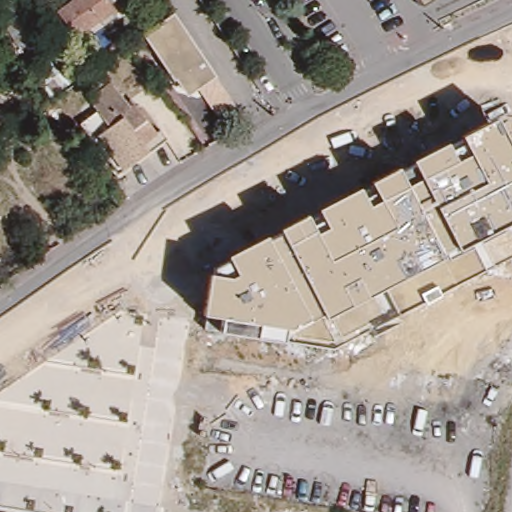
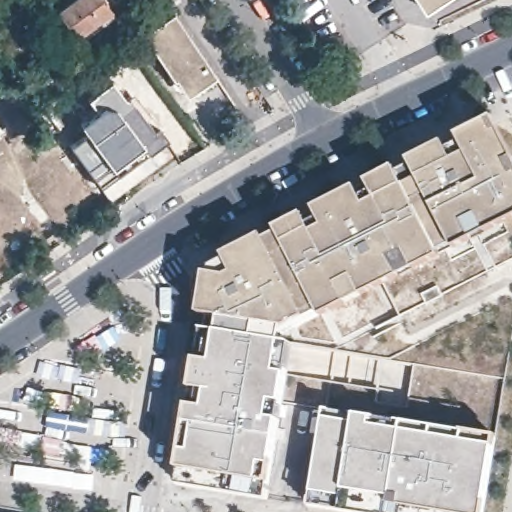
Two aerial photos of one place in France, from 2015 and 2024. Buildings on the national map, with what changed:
unchanged [(75,36),(58,13),(77,0),(125,0),(75,36)]
unchanged [(422,0),(432,0),(425,4),(422,0)]
unchanged [(184,17),(201,42),(220,70),(189,91),(148,30),(147,27),(177,6),(179,9),(184,17)]
unchanged [(134,104),(139,102),(160,132),(164,129),(172,138),(153,152),(152,151),(122,173),(96,139),(112,126),(92,98),(93,97),(87,89),(109,73),(115,81),(117,79),(134,104)]
unchanged [(437,257),(323,317),(320,311),(284,329),(282,341),(221,333),(223,319),(202,316),(208,269),(228,260),(226,256),(264,237),(267,241),(280,233),(277,229),(303,216),(306,220),(317,214),(315,210),(358,188),(360,192),(370,186),(368,182),(397,167),(399,171),(414,164),(411,160),(446,142),(450,150),(463,143),(459,135),(495,118),(512,152),(512,220),(458,247),(437,257)]
new [(282,341),(294,344),(273,483),(268,498),(178,483),(179,469),(189,405),(206,408),(208,392),(192,390),(197,358),(216,361),(221,333),(282,341)]
new [(356,415),(376,418),(376,422),(495,439),(493,446),(485,512),(341,512),(310,507),(326,420),(355,424),(356,415)]

